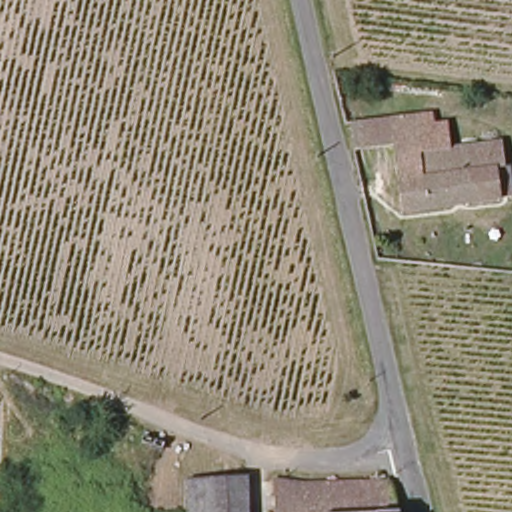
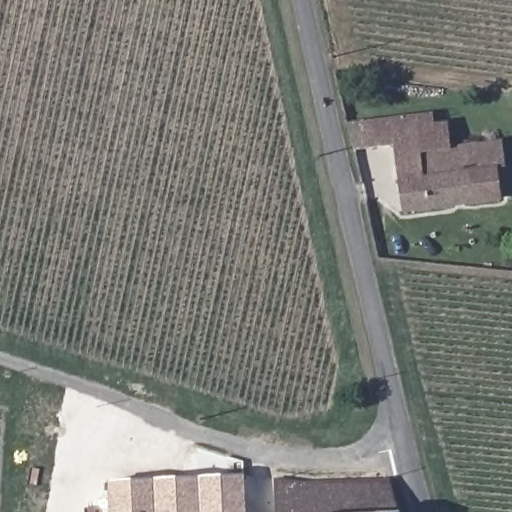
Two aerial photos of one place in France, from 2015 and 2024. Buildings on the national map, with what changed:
unchanged [(422,130),(422,146),(498,142),(501,173),(510,174),(510,196),(400,204),(394,148),(355,149),(353,119),(401,116),(402,129),(422,130)]
new [(109,512),(107,480),(198,474),(198,477),(197,512),(109,512)]
unchanged [(246,476),(247,512),(197,512),(198,477),(246,476)]
unchanged [(396,489),(403,512),(280,512),(280,478),(333,487),(396,489)]

